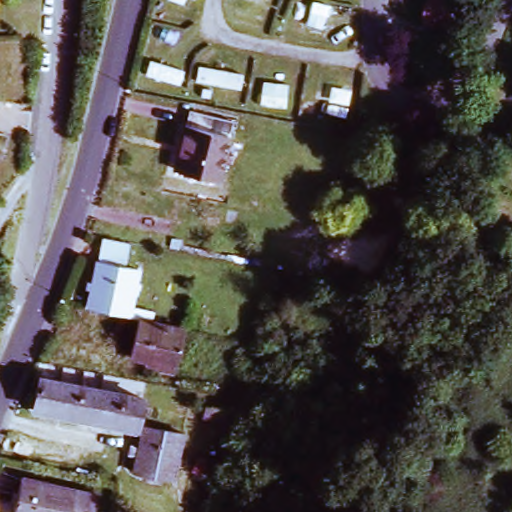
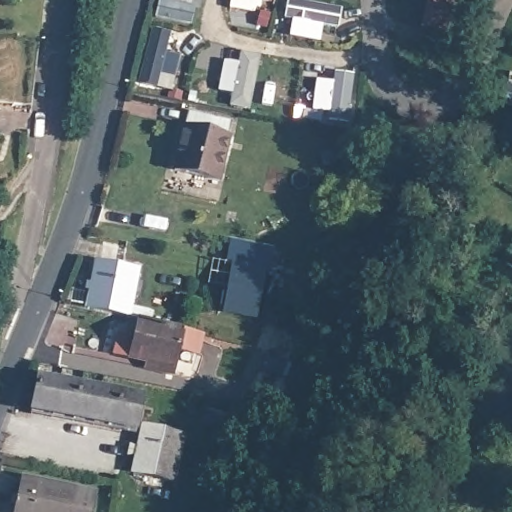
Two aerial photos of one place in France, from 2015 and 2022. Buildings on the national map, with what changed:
unchanged [(422,14),(425,0),(452,0),(446,32),(444,32),(429,29),(428,28),(419,27),(422,14)]
unchanged [(228,129),(214,188),(171,177),(185,119),(228,129)]
unchanged [(90,259),(95,259),(97,238),(123,243),(119,264),(133,267),(126,304),(148,309),(147,318),(133,316),(82,305),(90,259)]
new [(274,247),(259,320),(224,315),(233,265),(226,263),(231,241),(274,247)]
unchanged [(124,358),(133,316),(147,318),(179,325),(168,374),(153,370),(139,367),(141,362),(124,358)]
unchanged [(26,410),(28,403),(33,376),(138,396),(133,424),(131,430),(26,410)]
unchanged [(195,419),(197,408),(221,412),(229,414),(226,432),(212,430),(213,423),(195,419)]
unchanged [(168,480),(128,471),(137,426),(178,434),(168,480)]
unchanged [(9,512),(18,477),(93,494),(89,512),(9,512)]

